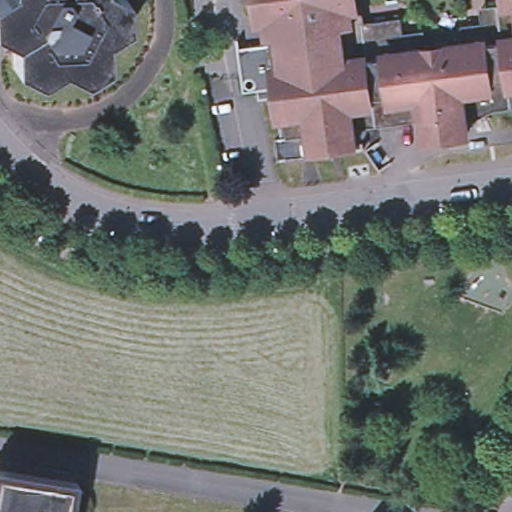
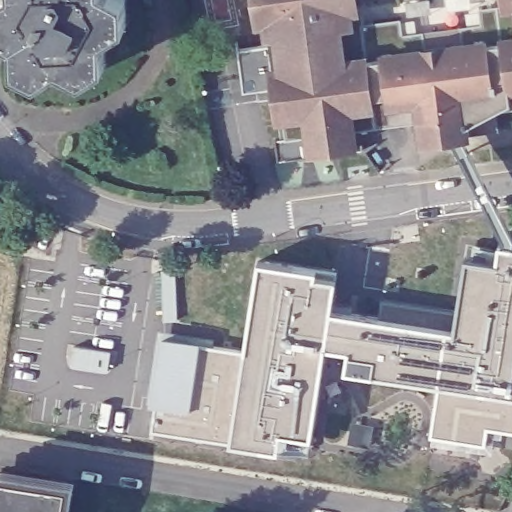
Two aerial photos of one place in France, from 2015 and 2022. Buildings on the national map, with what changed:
unchanged [(0,44),(0,1),(2,0),(126,0),(129,21),(105,39),(109,66),(88,83),(63,72),(40,90),(17,78),(12,49),(0,44)]
unchanged [(283,153),(280,131),(290,130),(288,110),(283,111),(280,90),(285,89),(283,79),(279,80),(274,36),(271,14),(264,15),(261,0),(362,0),(362,2),(366,1),(368,17),(405,13),(407,28),(428,25),(430,41),(472,36),(470,19),(487,17),(485,1),(494,0),(512,0),(512,100),(499,102),(462,123),(463,128),(434,132),(431,114),(359,123),(360,137),(316,143),(315,137),(308,138),(310,149),(283,153)]
unchanged [(262,82),(259,65),(246,66),(243,41),(274,36),(279,80),(262,82)]
new [(167,339),(245,352),(259,261),(317,270),(315,277),(335,281),(330,311),(454,330),(466,257),(496,262),(500,244),(512,245),(512,432),(489,429),(486,445),(431,437),(439,384),(373,373),(345,369),(348,350),(324,347),(310,435),(280,430),(277,449),(232,441),(152,430),(167,339)]
new [(72,346),(109,352),(106,372),(70,366),(72,346)]
unchanged [(0,474),(72,486),(67,512),(0,512),(0,474)]

